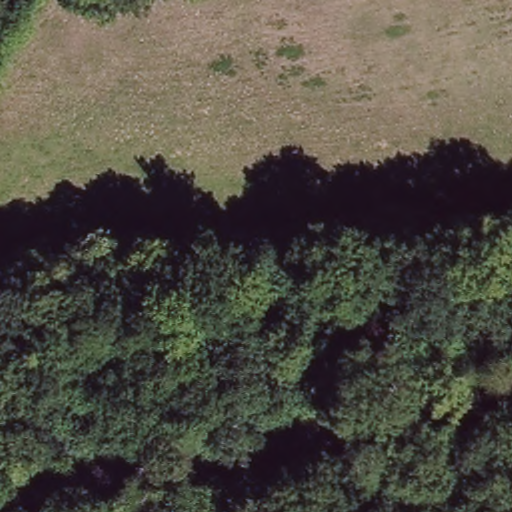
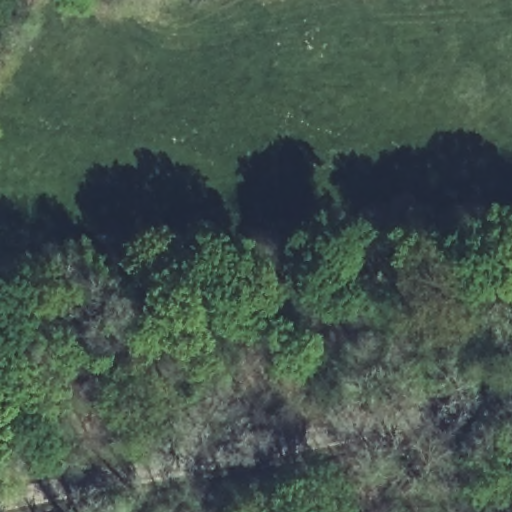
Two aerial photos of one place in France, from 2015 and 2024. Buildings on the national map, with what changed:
[]

